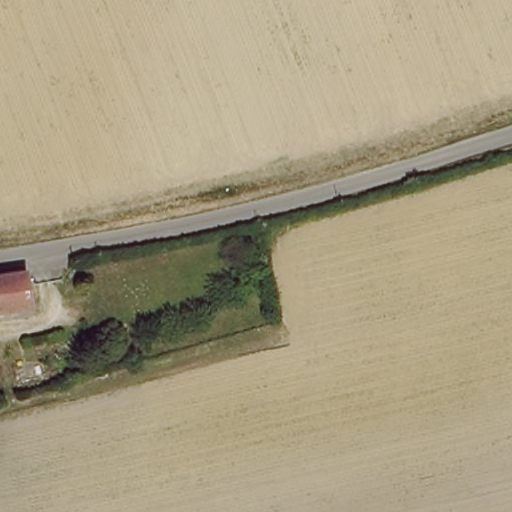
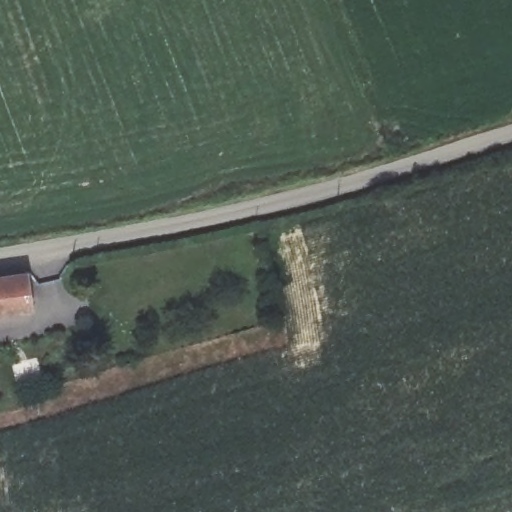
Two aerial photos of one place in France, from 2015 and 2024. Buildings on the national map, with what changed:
unchanged [(33,308),(0,313),(0,277),(29,272),(33,308)]

